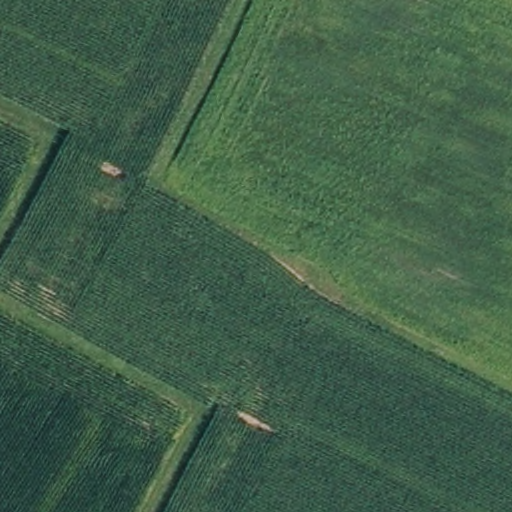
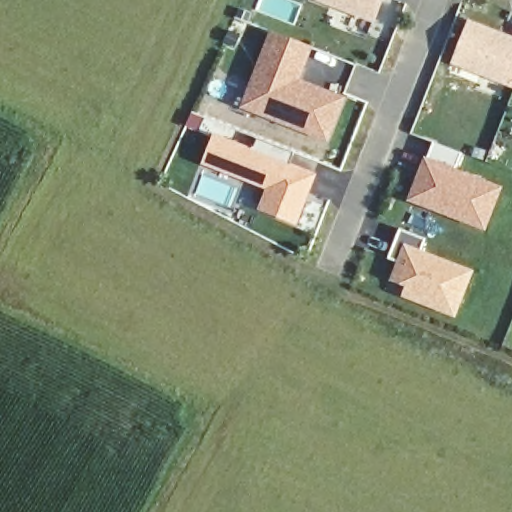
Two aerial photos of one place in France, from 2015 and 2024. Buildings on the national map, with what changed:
new [(376,25),(311,1),(312,0),(385,0),(376,25)]
new [(512,38),(512,89),(452,66),(470,22),(512,38)]
new [(313,49),(301,81),(347,99),(329,142),(240,110),(271,32),(313,49)]
new [(253,150),(257,141),(294,156),(291,166),(316,175),(297,227),(258,213),(266,191),(202,166),(215,134),(253,150)]
new [(462,154),(456,170),(502,187),(486,232),(407,202),(424,159),(428,160),(433,143),(462,154)]
new [(473,271),(457,320),(401,299),(405,288),(390,283),(404,246),(473,271)]

